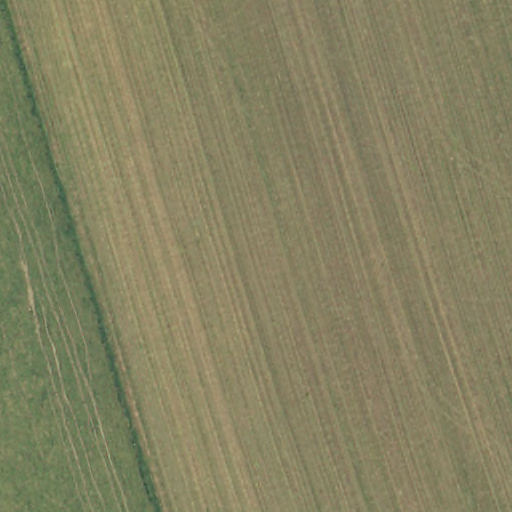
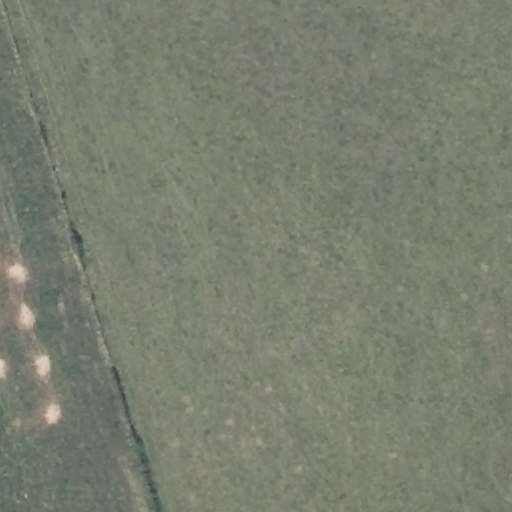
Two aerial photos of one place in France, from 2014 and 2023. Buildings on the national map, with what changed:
[]

